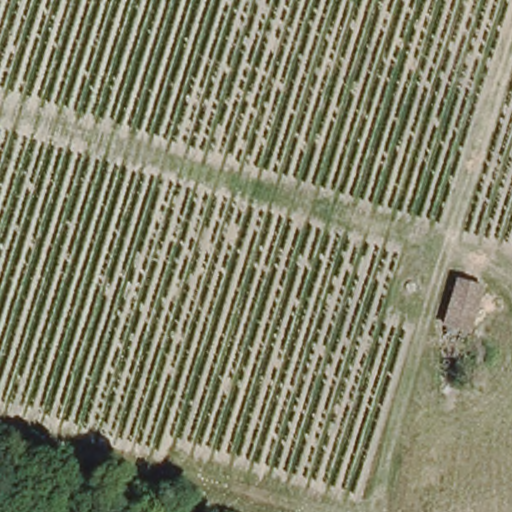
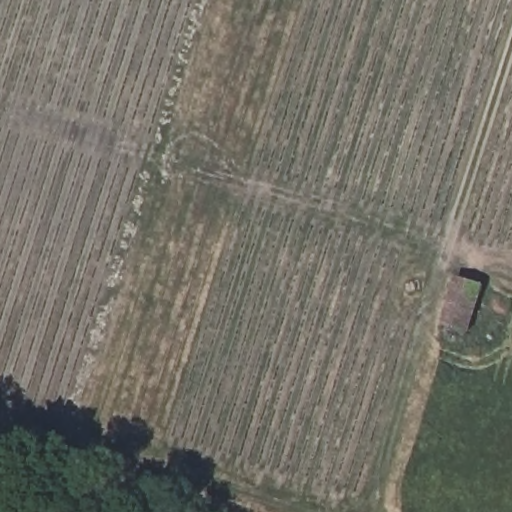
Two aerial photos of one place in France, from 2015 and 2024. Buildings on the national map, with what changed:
unchanged [(445,324),(461,277),(485,285),(471,332),(452,326),(445,324)]

